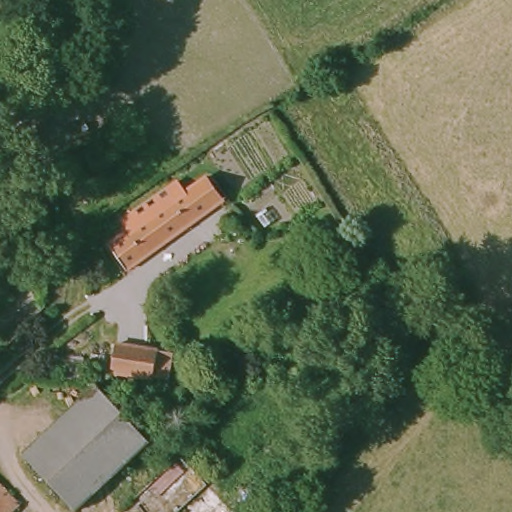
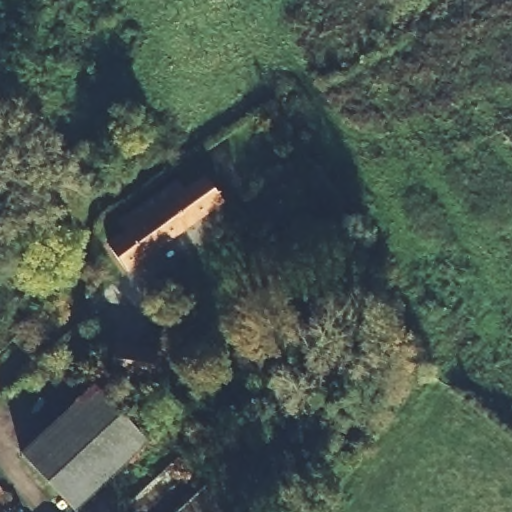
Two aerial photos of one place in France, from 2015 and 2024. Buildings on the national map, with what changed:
unchanged [(112,254),(134,238),(131,235),(125,227),(134,220),(173,191),(180,187),(188,198),(210,182),(227,203),(128,275),(112,254)]
unchanged [(300,248),(322,279),(318,282),(294,252),(300,248)]
unchanged [(162,380),(120,377),(123,349),(163,352),(162,380)]
unchanged [(74,512),(71,512),(18,454),(93,384),(147,443),(74,512)]
unchanged [(18,512),(0,512),(0,490),(20,510),(18,512)]

